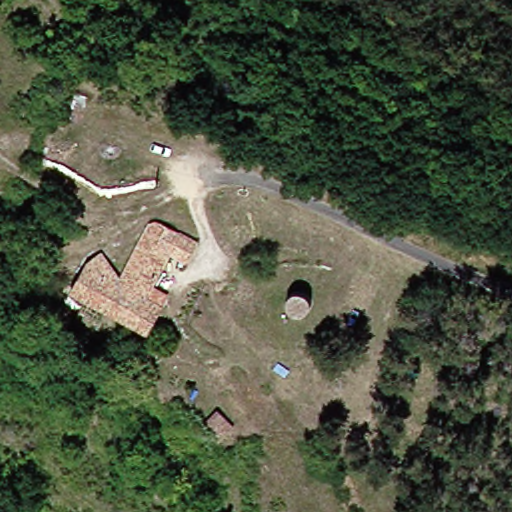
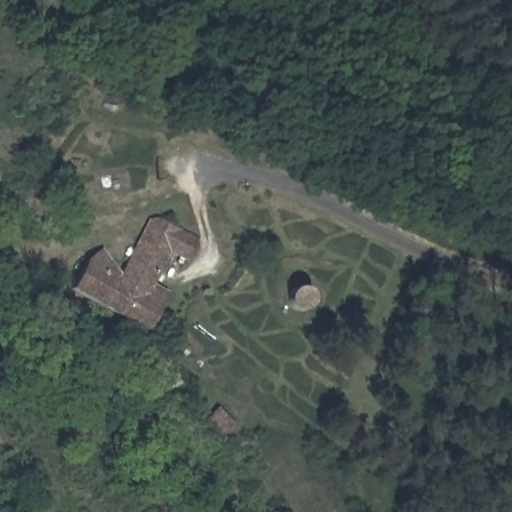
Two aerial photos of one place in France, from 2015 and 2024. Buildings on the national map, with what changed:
unchanged [(200,239),(188,260),(169,254),(146,292),(162,300),(142,331),(70,291),(87,259),(114,272),(151,212),(200,239)]
unchanged [(305,286),(315,297),(312,308),(300,317),(289,313),(286,305),(288,291),(305,286)]

